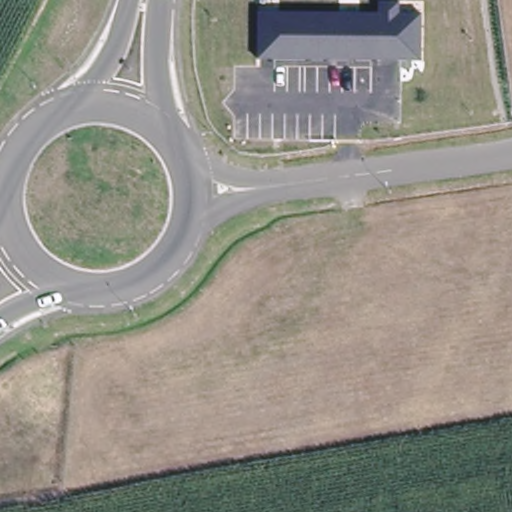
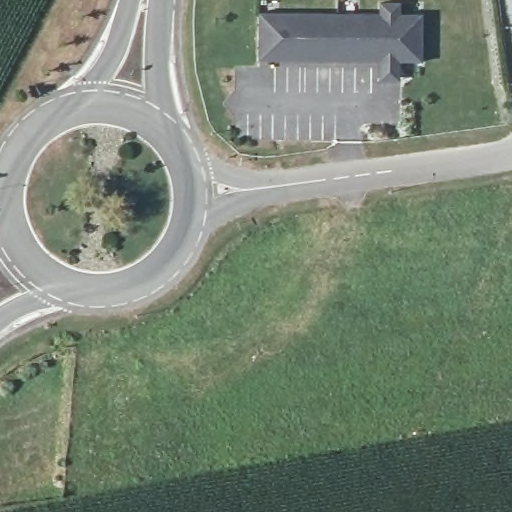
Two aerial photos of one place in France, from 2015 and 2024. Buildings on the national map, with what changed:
unchanged [(380,12),(381,0),(400,0),(401,14),(422,14),(422,62),(259,60),(260,12),(380,12)]

